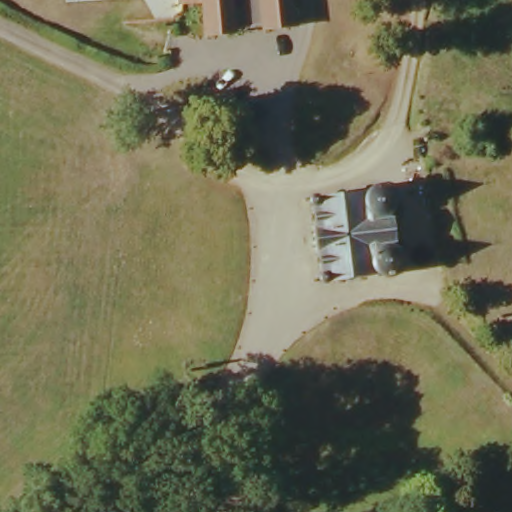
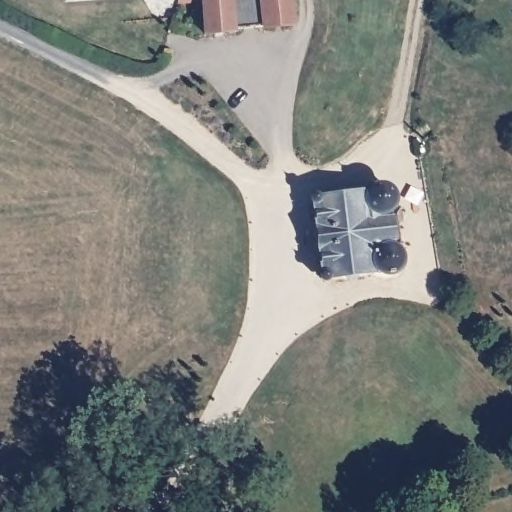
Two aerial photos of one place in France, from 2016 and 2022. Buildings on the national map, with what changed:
unchanged [(206,32),(206,25),(203,0),(289,0),(291,25),(206,32)]
unchanged [(389,192),(393,199),(392,207),(388,214),(383,217),(386,247),(393,249),(398,253),(402,260),(401,267),(397,273),(391,277),(381,275),(375,271),(320,276),(308,203),(361,197),(366,191),(374,187),(382,187),(389,192)]

